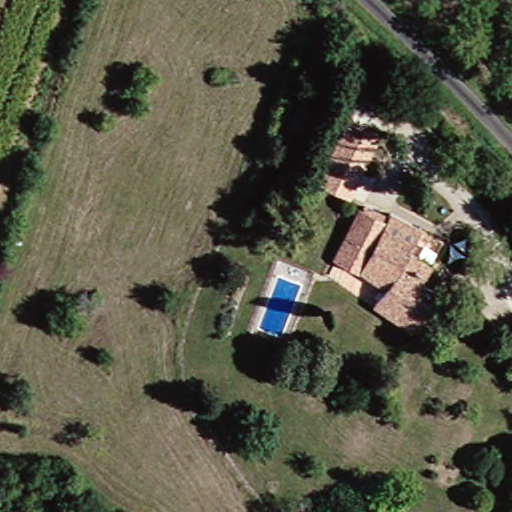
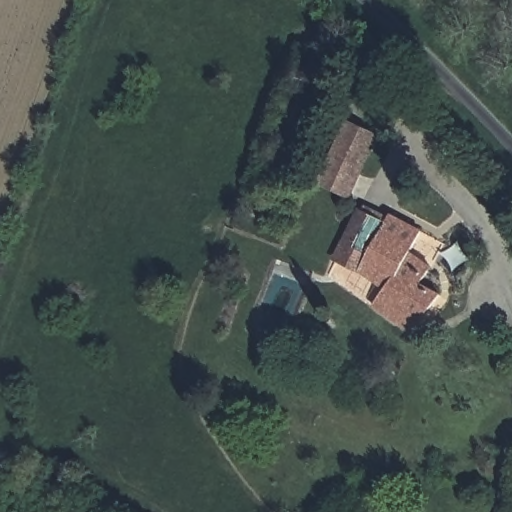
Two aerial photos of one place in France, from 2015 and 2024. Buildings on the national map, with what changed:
unchanged [(335,175),(357,130),(380,141),(387,145),(365,189),(358,204),(336,194),(329,190),(335,175)]
unchanged [(375,305),(388,288),(362,271),(338,262),(349,244),(367,216),(368,217),(371,213),(393,227),(395,223),(421,239),(410,254),(434,269),(422,285),(442,300),(413,331),(375,305)]

